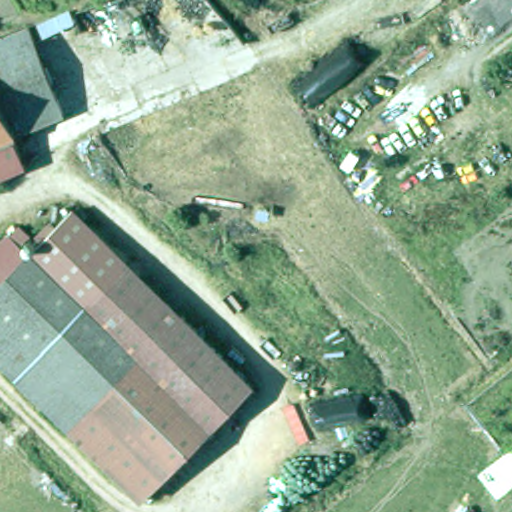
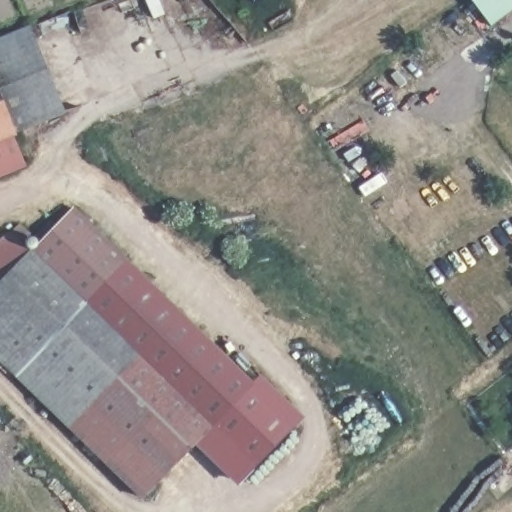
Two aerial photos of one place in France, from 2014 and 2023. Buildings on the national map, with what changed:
new [(471,0),(512,0),(512,9),(490,25),(471,0)]
unchanged [(65,122),(13,143),(0,149),(0,47),(30,35),(65,122)]
unchanged [(0,149),(13,143),(25,173),(0,184),(0,149)]
unchanged [(0,358),(0,285),(2,282),(0,280),(0,242),(10,231),(33,253),(75,209),(257,383),(214,428),(145,498),(0,358)]
new [(197,445),(214,428),(257,383),(254,380),(262,371),(305,415),(238,484),(197,445)]

